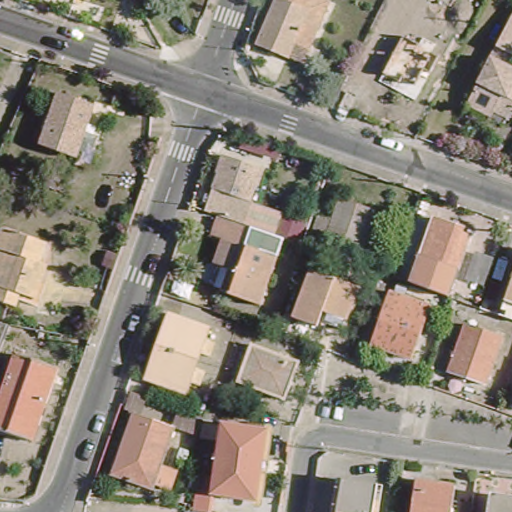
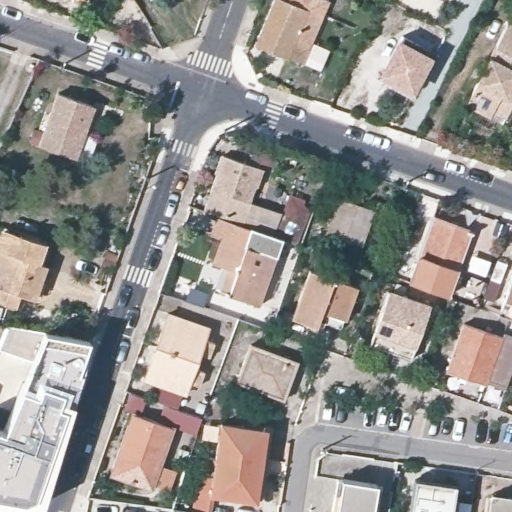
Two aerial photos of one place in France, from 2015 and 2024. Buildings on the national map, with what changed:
unchanged [(75,5),(59,0),(76,0),(75,5)]
unchanged [(306,51),(303,63),(284,56),(255,44),(272,0),(277,0),(285,3),(286,0),(321,0),(326,2),(310,43),(309,46),(306,51)]
demolished [(437,16),(438,17),(441,15),(446,18),(435,39),(413,27),(416,20),(403,13),(408,2),(404,0),(445,0),(437,16)]
unchanged [(493,98),(485,113),(466,102),(490,55),(496,44),(512,11),(512,56),(508,64),(512,66),(512,95),(497,88),(512,96),(512,103),(511,106),(493,98)]
unchanged [(404,36),(437,51),(430,71),(423,69),(413,89),(383,76),(404,36)]
unchanged [(350,112),(333,105),(347,77),(363,85),(350,112)]
unchanged [(49,89),(84,101),(66,153),(31,141),(49,89)]
unchanged [(251,216),(233,211),(231,218),(211,211),(220,188),(222,189),(228,175),(225,174),(231,156),(271,170),(264,188),(262,188),(251,216)]
unchanged [(359,244),(325,232),(336,198),(371,211),(359,244)]
unchanged [(235,268),(221,263),(229,239),(218,235),(225,219),(256,230),(251,246),(282,257),(266,304),(236,293),(227,291),(235,268)]
unchanged [(448,298),(415,285),(436,220),(472,233),(448,298)]
unchanged [(0,297),(0,247),(6,224),(50,238),(45,258),(51,260),(41,292),(37,291),(35,290),(33,290),(30,289),(26,288),(24,295),(21,304),(20,304),(0,297)]
unchanged [(322,305),(317,319),(291,310),(309,263),(357,280),(349,303),(345,314),(322,305)]
unchanged [(502,300),(512,270),(512,304),(502,300)]
unchanged [(491,313),(482,309),(488,290),(498,294),(491,313)]
unchanged [(412,363),(373,348),(392,296),(431,310),(412,363)]
unchanged [(195,367),(203,371),(199,386),(190,383),(186,394),(148,379),(170,315),(209,330),(205,340),(214,343),(208,357),(200,354),(195,367)]
unchanged [(488,391),(448,377),(466,329),(504,342),(488,391)]
new [(21,385),(45,331),(91,338),(73,402),(40,504),(27,510),(0,505),(0,427),(5,428),(21,385)]
unchanged [(285,404),(238,386),(252,350),(300,367),(285,404)]
demolished [(0,428),(0,409),(18,354),(56,368),(33,438),(0,428)]
unchanged [(151,488),(113,475),(136,413),(173,427),(151,488)]
unchanged [(258,504),(213,498),(222,428),(269,434),(258,504)]
unchanged [(374,483),(369,512),(331,512),(335,476),(374,483)]
unchanged [(413,512),(417,484),(455,489),(452,512),(413,512)]
unchanged [(492,512),(495,496),(512,499),(512,512),(492,512)]

